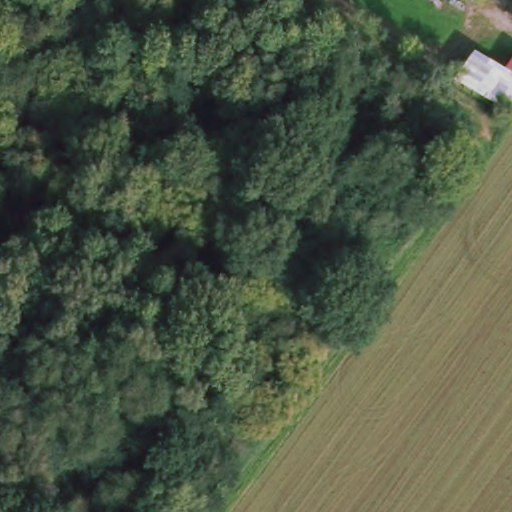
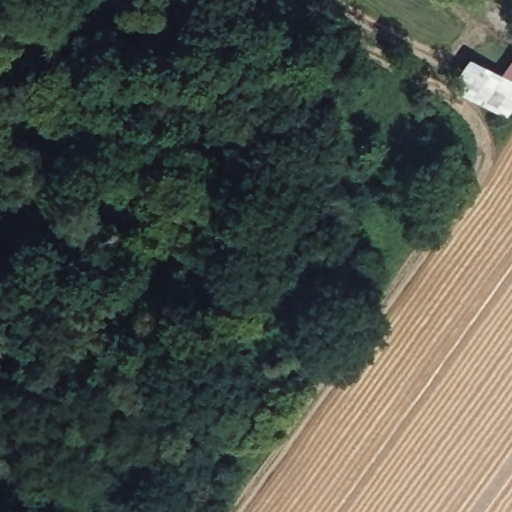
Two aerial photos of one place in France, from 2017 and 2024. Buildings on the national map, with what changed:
unchanged [(507,122),(449,90),(468,54),(512,77),(512,114),(507,122)]

